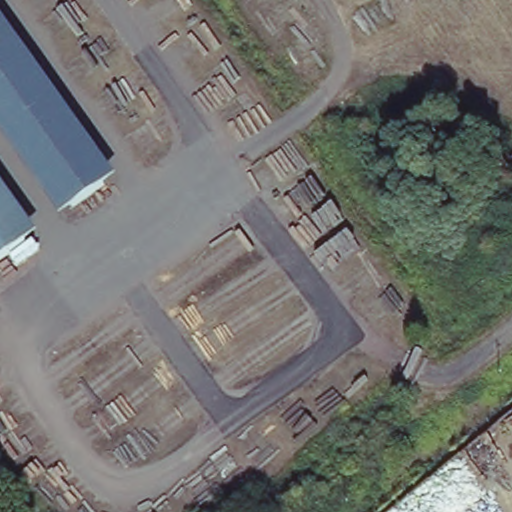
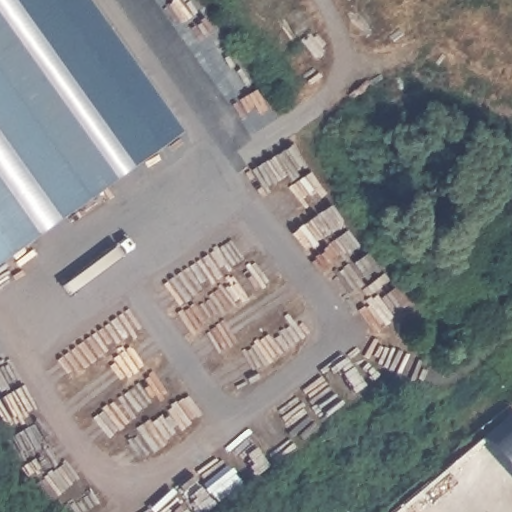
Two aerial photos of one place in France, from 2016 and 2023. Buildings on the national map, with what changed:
new [(116,177),(0,11),(0,0),(17,0),(134,165),(116,177)]
new [(134,165),(17,0),(88,0),(181,130),(134,165)]
unchanged [(64,216),(0,126),(0,11),(116,177),(64,216)]
new [(39,231),(0,177),(0,126),(64,216),(39,231)]
unchanged [(0,256),(0,177),(39,231),(0,256)]

